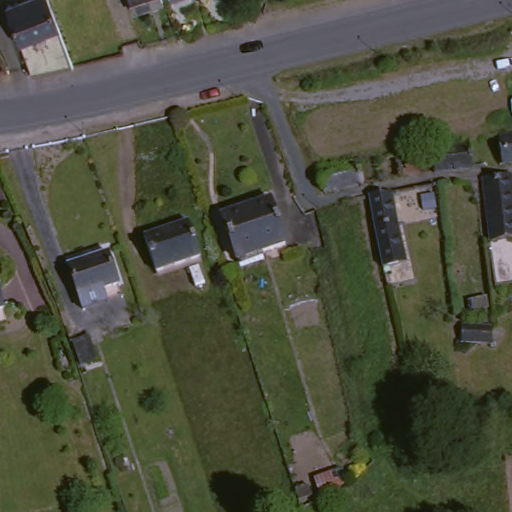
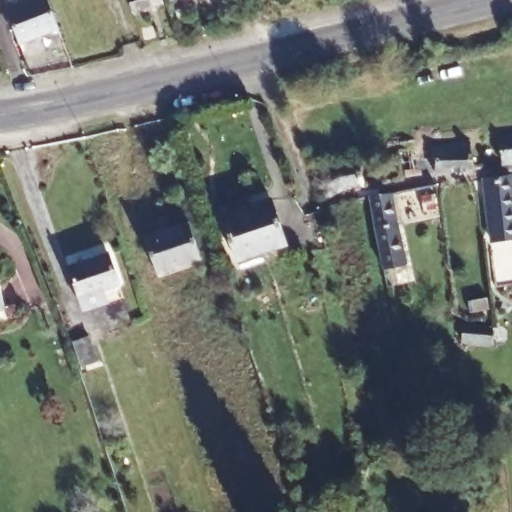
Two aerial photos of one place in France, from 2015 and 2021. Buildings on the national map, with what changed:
unchanged [(29,0),(41,0),(53,31),(61,55),(67,69),(26,78),(14,45),(0,10),(29,0)]
unchanged [(157,8),(128,18),(122,0),(154,0),(157,8)]
unchanged [(166,0),(195,0),(169,8),(166,0)]
unchanged [(498,173),(492,145),(512,140),(512,171),(498,173)]
unchanged [(452,149),(465,147),(469,172),(431,177),(427,151),(452,149)]
unchanged [(386,155),(398,154),(398,157),(399,157),(403,182),(393,183),(391,183),(386,155)]
unchanged [(322,172),(321,169),(352,165),(359,165),(362,190),(326,195),(324,188),(317,188),(314,174),(314,173),(322,172)]
unchanged [(508,181),(508,182),(512,213),(512,288),(496,290),(480,185),(508,181)]
unchanged [(379,274),(369,235),(366,201),(388,198),(390,231),(389,232),(400,268),(379,274)]
unchanged [(263,208),(276,252),(277,252),(227,265),(219,243),(226,240),(219,220),(263,208)]
unchanged [(184,226),(197,260),(153,275),(141,240),(184,226)]
unchanged [(74,301),(62,268),(103,253),(115,286),(119,297),(104,303),(79,312),(74,301)]
unchanged [(451,346),(454,327),(493,331),(489,352),(451,346)]
unchanged [(78,352),(89,377),(73,383),(63,358),(78,352)]
unchanged [(334,509),(324,512),(308,512),(304,502),(329,493),(334,509)]
unchanged [(298,512),(289,512),(298,509),(298,512)]

